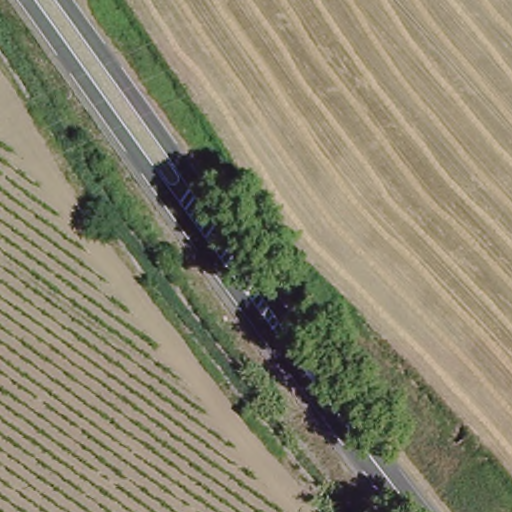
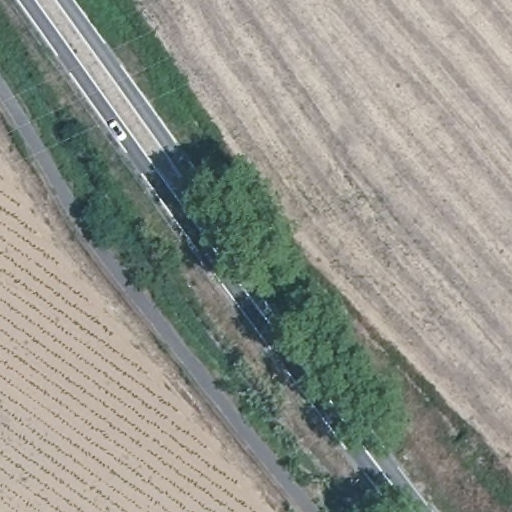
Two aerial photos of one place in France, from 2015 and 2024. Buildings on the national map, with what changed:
[]

